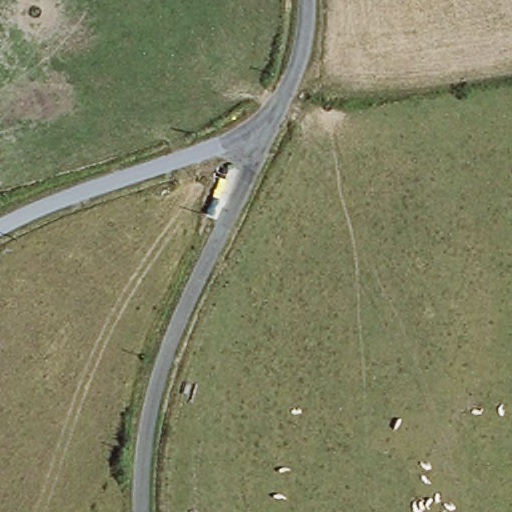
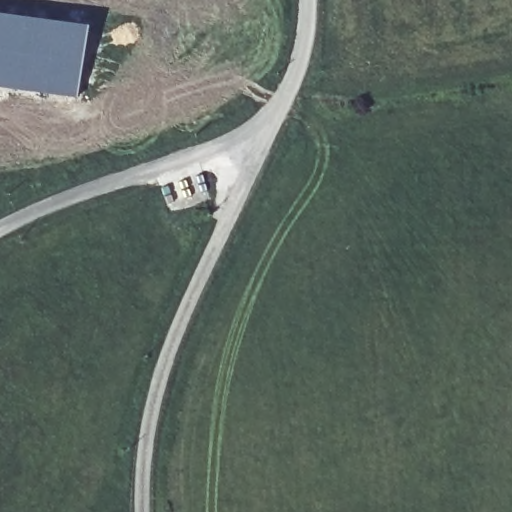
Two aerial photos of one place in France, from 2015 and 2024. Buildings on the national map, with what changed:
new [(76,99),(0,88),(0,15),(86,26),(76,99)]

